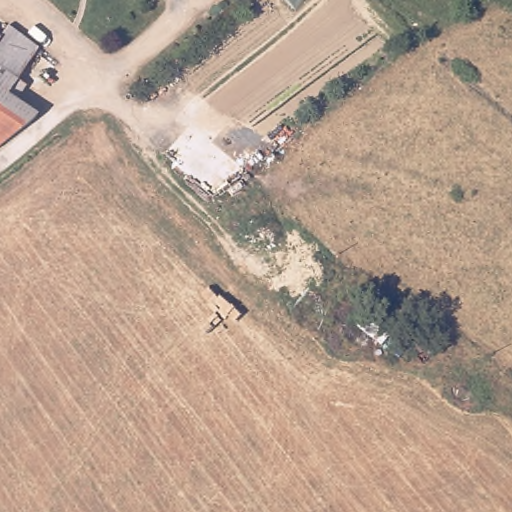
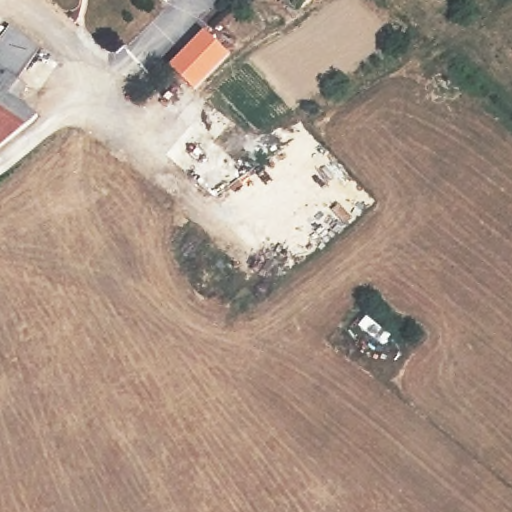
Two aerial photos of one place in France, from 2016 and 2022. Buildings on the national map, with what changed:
unchanged [(288,0),(300,0),(295,6),(288,0)]
unchanged [(41,45),(12,91),(39,109),(32,114),(0,93),(0,34),(7,22),(41,45)]
new [(230,54),(194,90),(167,65),(204,29),(230,54)]
unchanged [(0,93),(32,114),(0,142),(0,93)]

